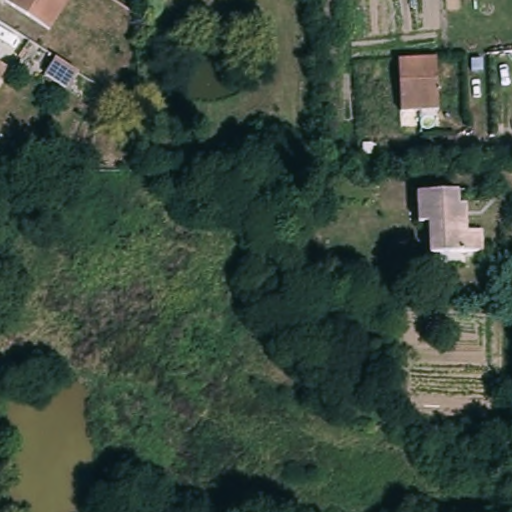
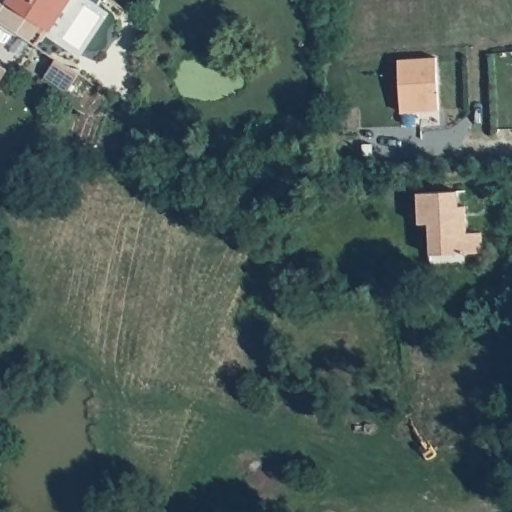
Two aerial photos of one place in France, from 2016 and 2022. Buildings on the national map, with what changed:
unchanged [(49,31),(5,2),(6,0),(70,0),(49,31)]
unchanged [(440,111),(402,113),(399,59),(437,57),(440,111)]
unchanged [(78,92),(54,76),(66,60),(89,75),(78,92)]
unchanged [(0,90),(0,62),(12,69),(0,90)]
unchanged [(435,256),(434,225),(424,225),(423,194),(464,192),(464,206),(471,206),(472,233),(487,232),(488,254),(435,256)]

